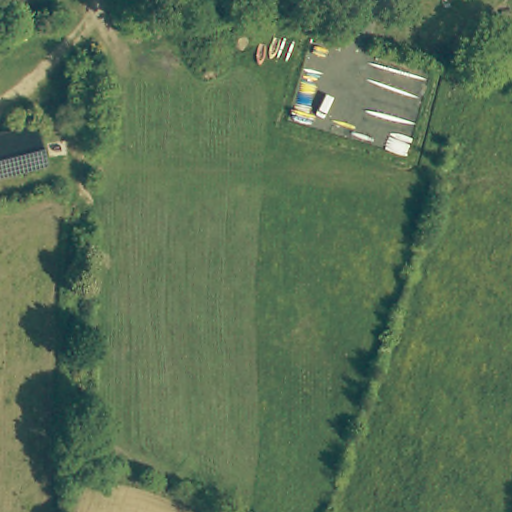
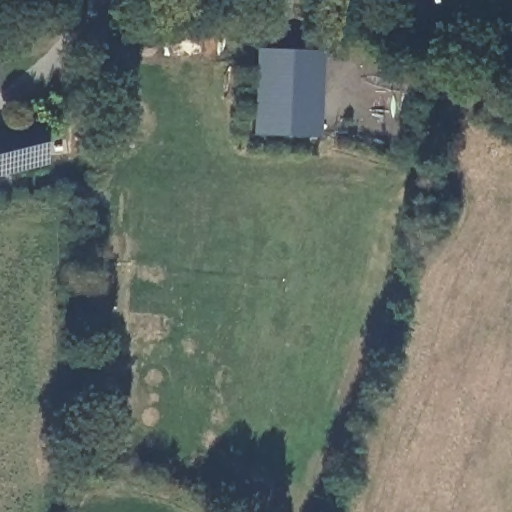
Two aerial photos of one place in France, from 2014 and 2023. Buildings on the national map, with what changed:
new [(319,137),(251,135),(254,47),(323,50),(319,137)]
unchanged [(0,175),(0,133),(28,126),(38,165),(0,175)]

